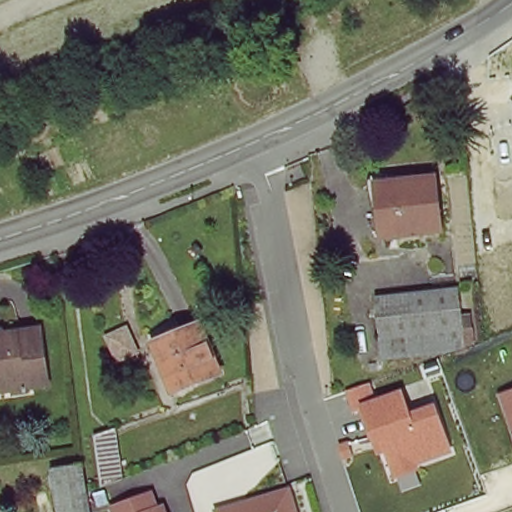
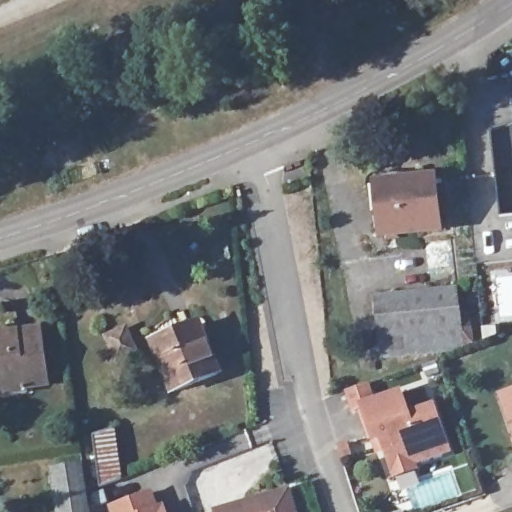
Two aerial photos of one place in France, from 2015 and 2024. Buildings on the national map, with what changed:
unchanged [(429,180),(435,227),(378,234),(373,186),(429,180)]
unchanged [(373,297),(452,288),(456,328),(377,337),(373,297)]
unchanged [(196,324),(218,371),(173,391),(153,343),(196,324)]
unchanged [(46,382),(0,389),(0,331),(37,325),(46,382)]
unchanged [(456,328),(458,346),(458,348),(447,350),(380,359),(377,337),(456,328)]
unchanged [(402,384),(409,407),(433,398),(454,454),(394,478),(384,453),(375,457),(357,400),(402,384)]
unchanged [(500,393),(512,390),(512,436),(500,393)]
unchanged [(83,494),(86,512),(55,512),(48,470),(78,463),(83,494)]
unchanged [(298,512),(214,512),(211,506),(291,486),(298,512)]
unchanged [(152,492),(158,506),(165,504),(168,512),(111,512),(108,504),(152,492)]

